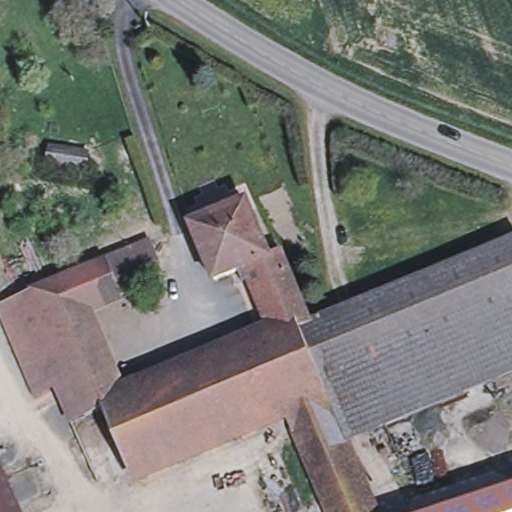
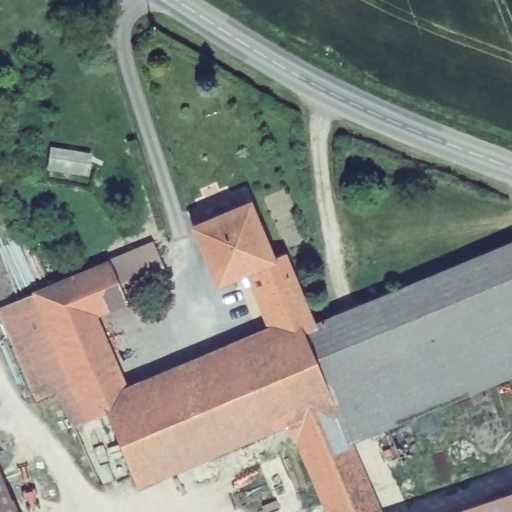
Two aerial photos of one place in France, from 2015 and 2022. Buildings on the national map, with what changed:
unchanged [(312,327),(312,330),(302,333),(275,345),(250,284),(242,288),(239,280),(217,290),(194,231),(249,209),(270,261),(282,257),(312,327)]
unchanged [(512,245),(512,379),(418,417),(375,301),(512,245)]
unchanged [(151,248),(160,268),(117,286),(108,265),(151,248)]
unchanged [(108,265),(117,286),(124,304),(93,316),(50,334),(35,296),(108,265)]
unchanged [(35,296),(50,334),(74,389),(40,402),(2,310),(35,296)]
unchanged [(375,301),(418,417),(382,432),(337,317),(375,301)]
unchanged [(93,316),(123,387),(120,388),(127,406),(150,397),(175,460),(132,477),(107,418),(89,425),(74,389),(50,334),(93,316)]
unchanged [(312,330),(312,327),(337,317),(382,432),(350,445),(330,397),(302,333),(312,330)]
unchanged [(302,333),(330,397),(285,416),(175,460),(150,397),(275,345),(302,333)]
unchanged [(350,445),(378,512),(326,512),(285,416),(330,397),(350,445)]
unchanged [(0,512),(0,468),(18,512),(0,512)]
unchanged [(454,512),(512,493),(512,512),(454,512)]

